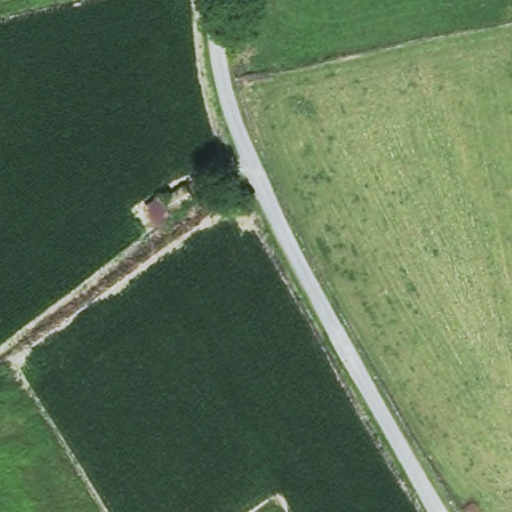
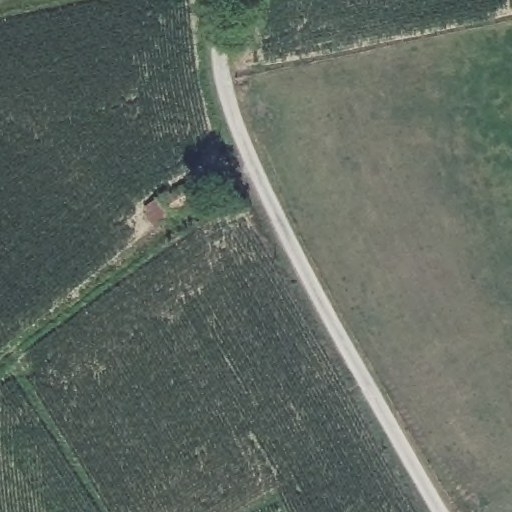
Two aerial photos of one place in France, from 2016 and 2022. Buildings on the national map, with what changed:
unchanged [(141,204),(160,192),(166,197),(185,186),(194,199),(151,220),(141,204)]

